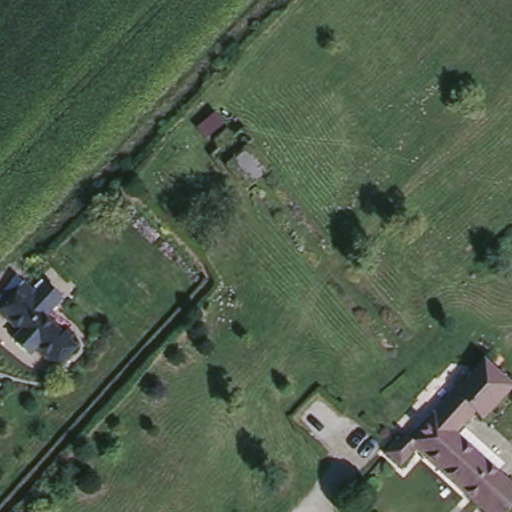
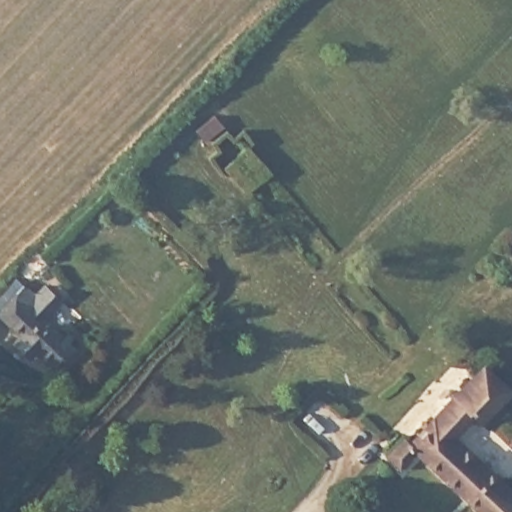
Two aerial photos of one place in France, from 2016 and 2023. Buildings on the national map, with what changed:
unchanged [(7,337),(18,327),(0,309),(29,282),(39,293),(45,287),(49,282),(64,298),(50,311),(44,316),(63,336),(67,331),(72,336),(67,340),(75,347),(55,366),(36,346),(35,344),(24,354),(7,337)]
unchanged [(477,419),(471,413),(452,435),(499,480),(512,492),(512,502),(503,512),(481,512),(414,448),(398,464),(386,452),(402,434),(406,438),(480,359),(508,385),(477,419)]

